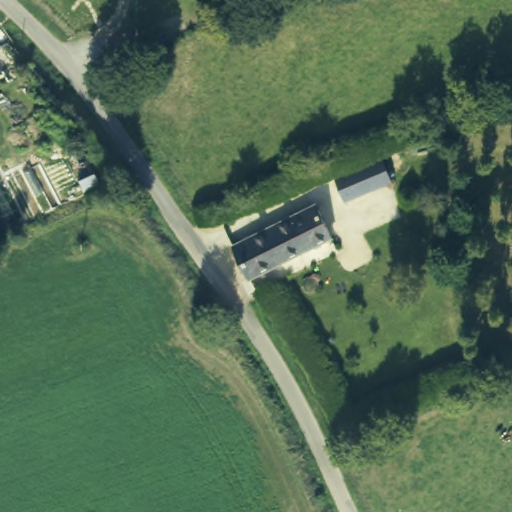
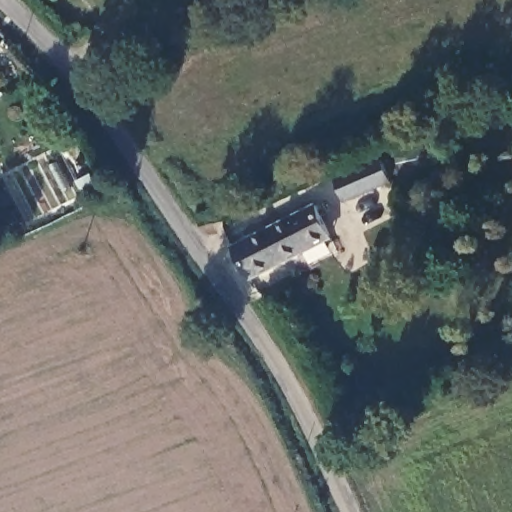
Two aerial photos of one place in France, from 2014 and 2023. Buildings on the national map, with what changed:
unchanged [(380,162),(391,184),(347,204),(337,184),(380,162)]
unchanged [(302,249),(304,252),(250,284),(230,253),(309,206),(326,231),(317,237),(302,249)]
unchanged [(310,294),(306,291),(303,287),(304,281),(309,277),(312,276),(319,280),(320,289),(316,292),(310,294)]

